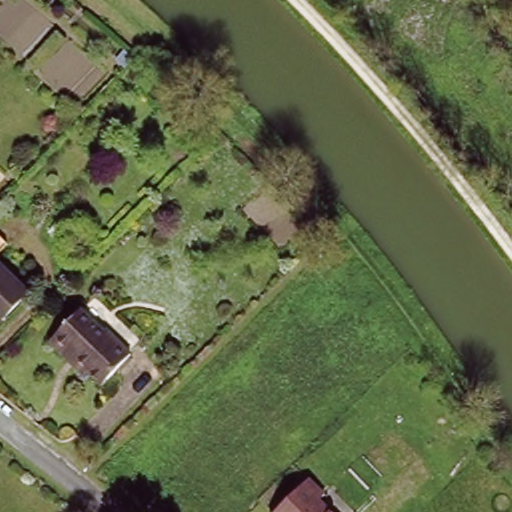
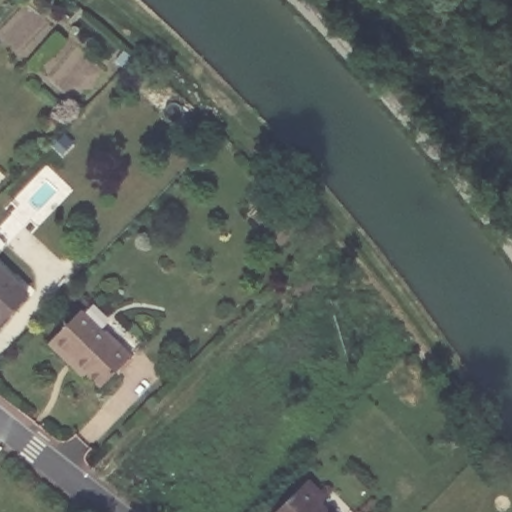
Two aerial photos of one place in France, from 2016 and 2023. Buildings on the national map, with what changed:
unchanged [(0,315),(0,264),(25,289),(0,315)]
unchanged [(61,363),(43,346),(75,314),(78,318),(90,305),(132,346),(120,358),(122,361),(95,389),(82,376),(78,380),(61,363)]
unchanged [(308,477),(325,494),(317,501),(328,512),(274,512),(301,484),(308,477)]

